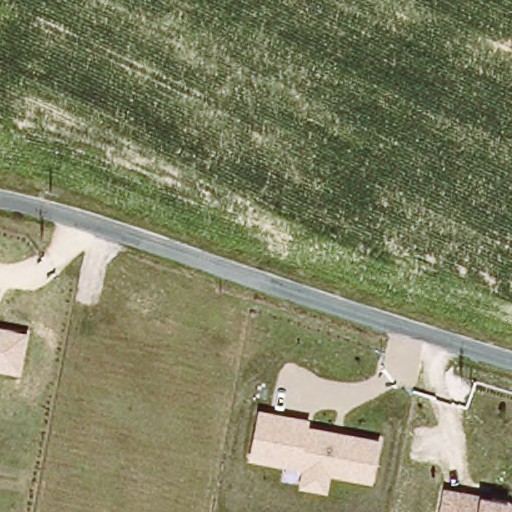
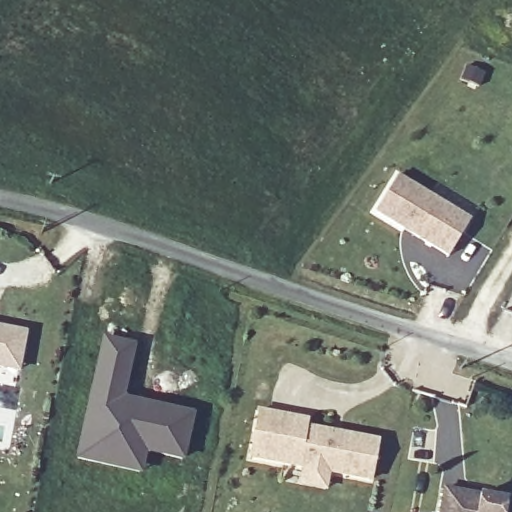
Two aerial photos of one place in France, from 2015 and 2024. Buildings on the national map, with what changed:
new [(460,236),(446,259),(374,214),(395,179),(448,211),(467,223),(460,236)]
unchanged [(20,373),(0,369),(0,328),(28,332),(20,373)]
new [(104,340),(132,348),(120,400),(190,418),(180,461),(142,452),(137,475),(75,460),(104,340)]
unchanged [(311,419),(309,427),(380,440),(372,484),(330,476),(326,493),(300,488),(302,470),(249,460),(258,410),(311,419)]
unchanged [(479,493),(507,498),(512,502),(512,512),(437,512),(442,486),(479,493)]

